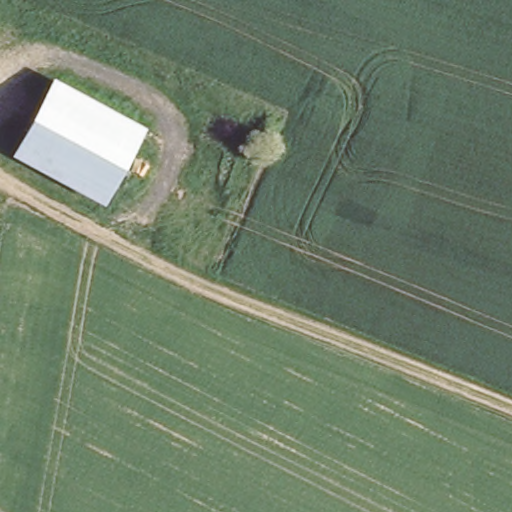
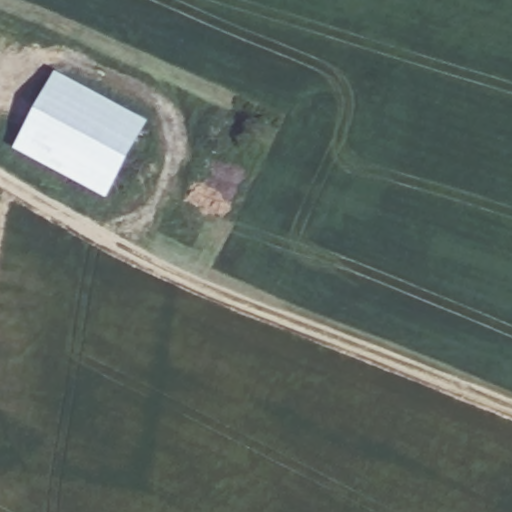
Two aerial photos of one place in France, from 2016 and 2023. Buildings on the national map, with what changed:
unchanged [(147,123),(103,197),(16,145),(58,72),(147,123)]

